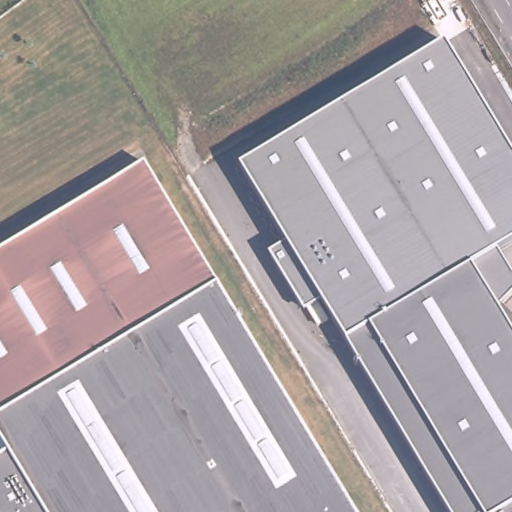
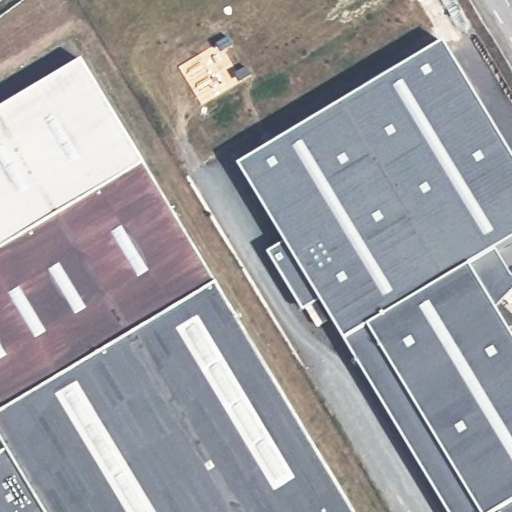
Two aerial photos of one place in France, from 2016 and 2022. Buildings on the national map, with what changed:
unchanged [(320,298),(301,311),(266,254),(286,242),(238,166),(443,42),(512,157),(512,240),(500,247),(473,263),(347,338),(320,298)]
new [(0,249),(0,108),(82,59),(147,162),(139,167),(0,249)]
unchanged [(0,414),(0,249),(147,162),(221,282),(0,414)]
unchanged [(500,247),(512,268),(512,277),(493,296),(473,263),(500,247)]
unchanged [(473,263),(493,296),(512,328),(512,512),(450,512),(347,338),(473,263)]
unchanged [(0,431),(0,414),(221,282),(358,512),(0,512),(0,456),(11,450),(0,431)]
unchanged [(0,456),(0,431),(11,450),(0,456)]

